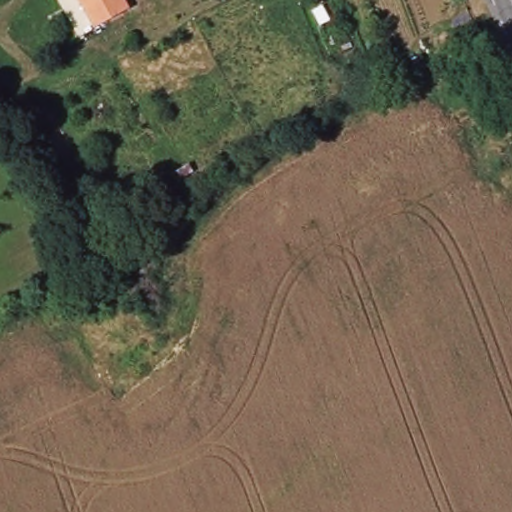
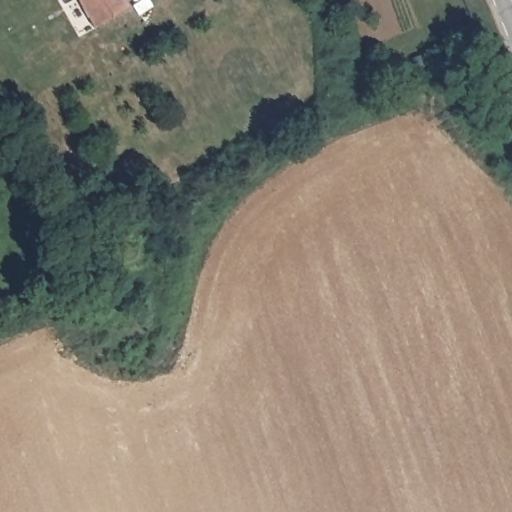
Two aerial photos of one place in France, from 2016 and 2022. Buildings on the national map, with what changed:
unchanged [(93,26),(78,0),(126,0),(130,7),(93,26)]
unchanged [(465,19),(474,45),(443,57),(432,30),(465,19)]

